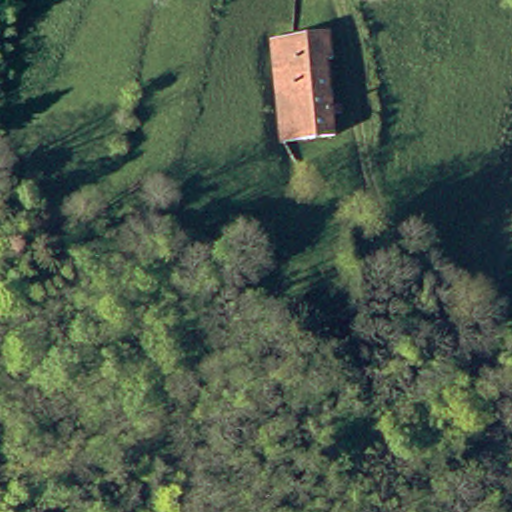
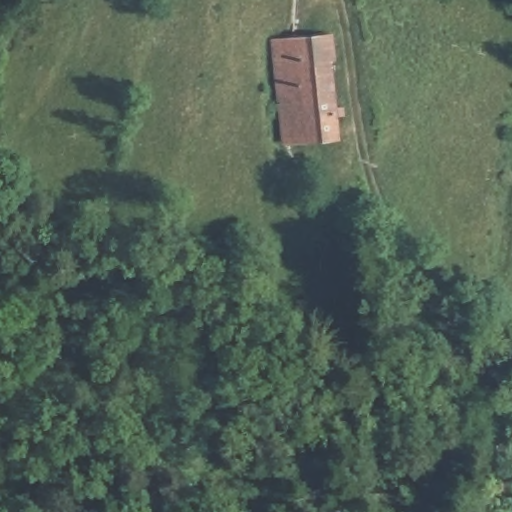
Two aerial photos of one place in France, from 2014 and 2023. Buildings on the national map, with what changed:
unchanged [(316,34),(320,62),(315,63),(322,107),(326,107),(327,114),(323,114),(327,135),(297,141),(279,40),(316,34)]

